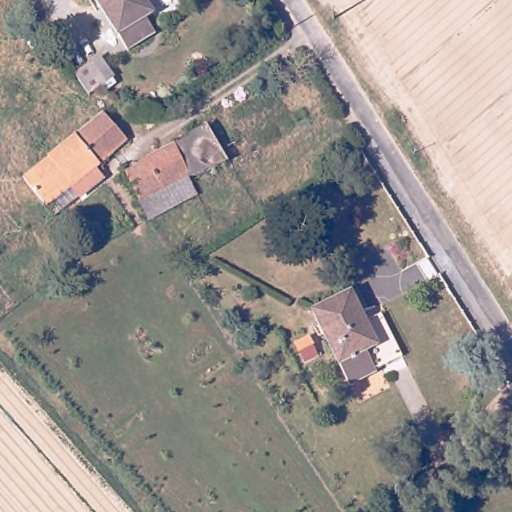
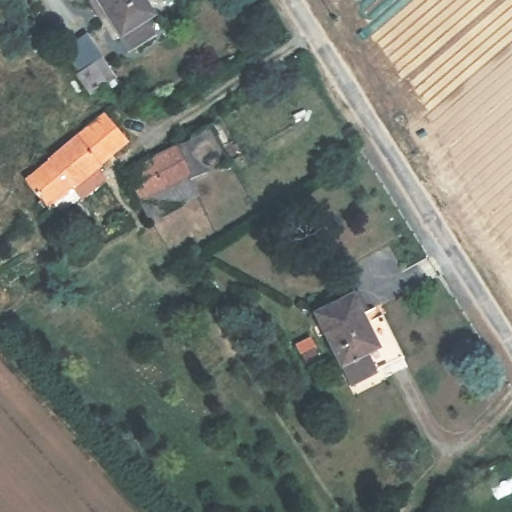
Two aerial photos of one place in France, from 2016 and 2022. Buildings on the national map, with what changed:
unchanged [(157,36),(130,52),(98,0),(145,0),(155,16),(148,20),(157,36)]
unchanged [(86,66),(98,57),(112,78),(100,87),(86,66)]
unchanged [(280,89),(300,126),(240,164),(222,123),(280,89)]
unchanged [(62,216),(53,204),(47,209),(25,180),(89,127),(104,114),(130,142),(95,170),(105,182),(62,216)]
unchanged [(243,171),(236,173),(233,167),(193,181),(149,202),(138,175),(155,160),(191,144),(199,136),(222,123),(240,164),(243,171)]
unchanged [(373,353),(382,373),(356,385),(322,310),(362,292),(387,347),(373,353)]

